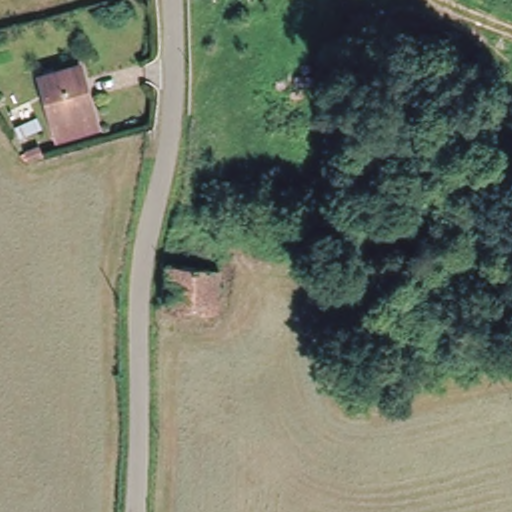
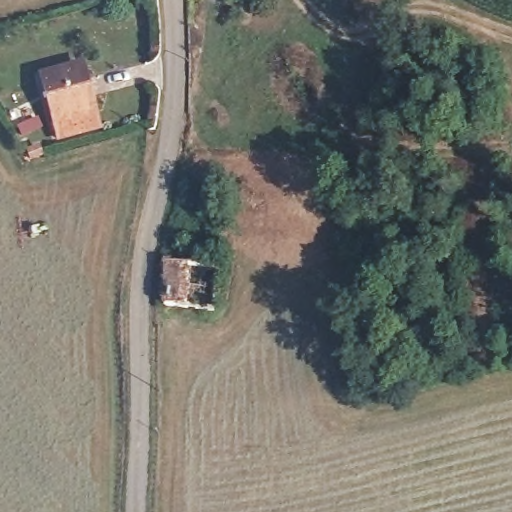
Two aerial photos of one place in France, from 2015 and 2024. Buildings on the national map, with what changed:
unchanged [(37,76),(77,65),(95,130),(55,142),(37,76)]
unchanged [(17,127),(31,122),(34,132),(22,137),(17,127)]
unchanged [(213,303),(211,316),(165,308),(165,304),(154,300),(156,286),(164,286),(167,267),(215,273),(215,287),(227,288),(225,305),(213,303)]

